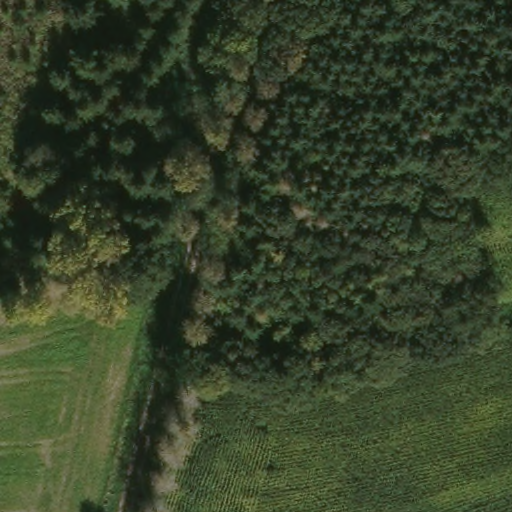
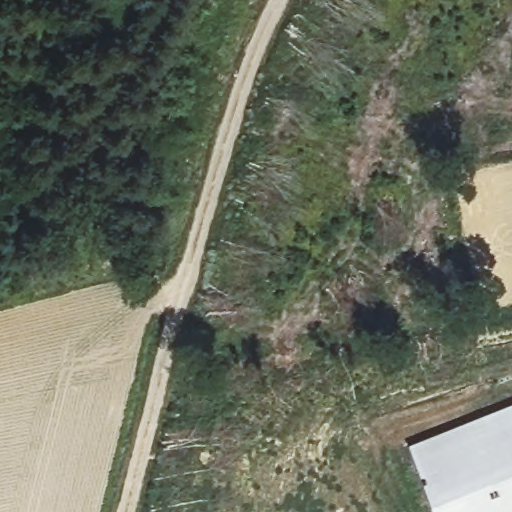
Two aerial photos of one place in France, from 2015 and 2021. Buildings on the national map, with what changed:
new [(512,403),(512,512),(436,512),(410,446),(512,403)]

